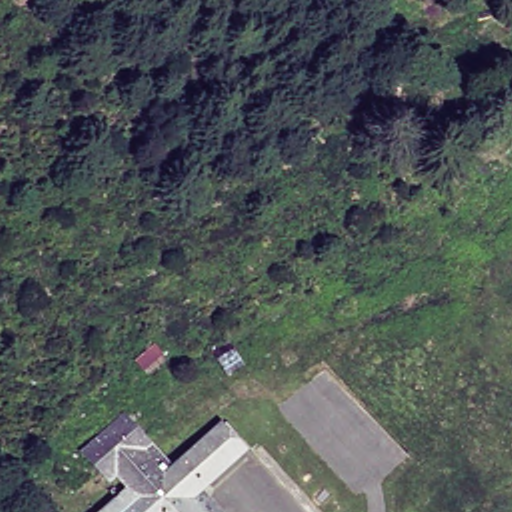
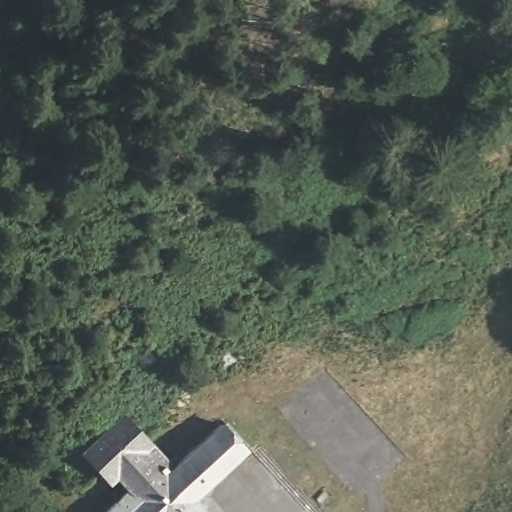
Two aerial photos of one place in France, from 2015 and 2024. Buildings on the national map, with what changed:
unchanged [(155,446),(173,467),(195,449),(224,425),(246,452),(218,475),(199,491),(216,512),(97,512),(129,485),(117,469),(109,476),(85,446),(127,412),(155,446)]

